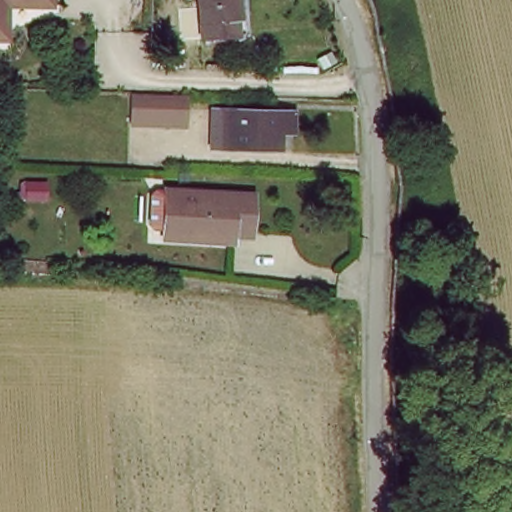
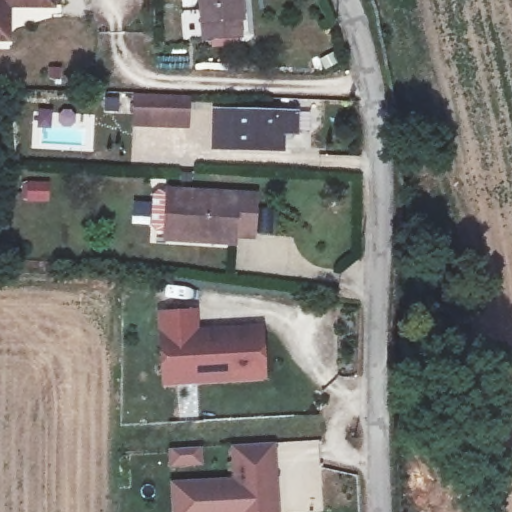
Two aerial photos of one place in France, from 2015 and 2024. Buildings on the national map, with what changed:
unchanged [(19,10),(16,47),(0,47),(0,0),(64,0),(65,9),(19,10)]
unchanged [(208,32),(205,0),(244,0),(246,34),(208,32)]
unchanged [(192,95),(190,128),(134,126),(134,93),(192,95)]
unchanged [(302,109),(301,136),(287,136),(287,150),(213,149),(213,108),(302,109)]
unchanged [(265,189),(262,230),(242,228),(240,239),(219,238),(220,228),(174,224),(164,223),(160,217),(161,191),(169,183),(177,184),(265,189)]
new [(266,379),(161,384),(157,310),(200,308),(200,326),(264,323),(266,379)]
new [(172,512),(171,480),(233,476),(232,445),(277,442),(279,512),(172,512)]

